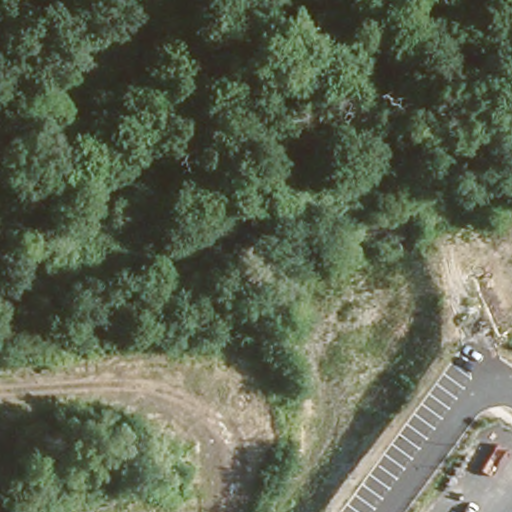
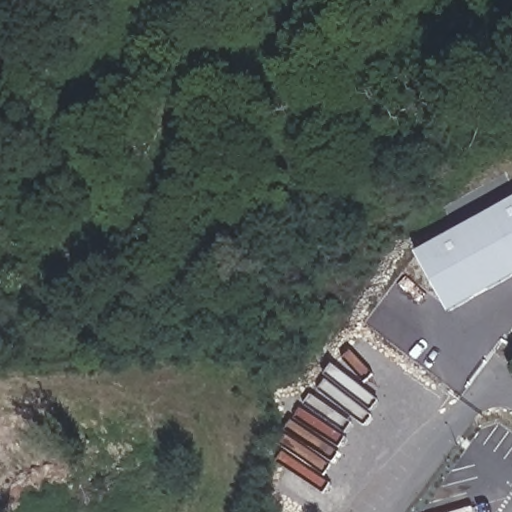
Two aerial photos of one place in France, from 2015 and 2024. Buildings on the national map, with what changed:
new [(512,204),(512,279),(446,314),(414,258),(512,204)]

